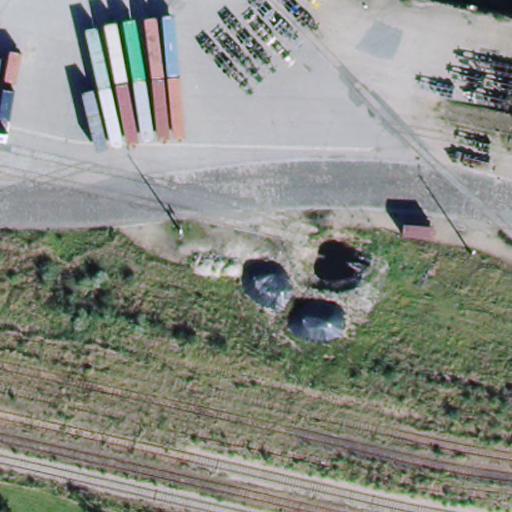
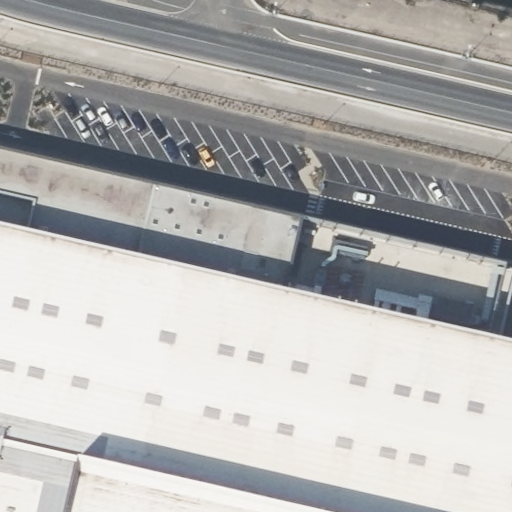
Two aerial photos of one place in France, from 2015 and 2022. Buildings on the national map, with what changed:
new [(154,279),(512,360),(512,512),(0,512),(0,164),(168,205),(154,279)]

